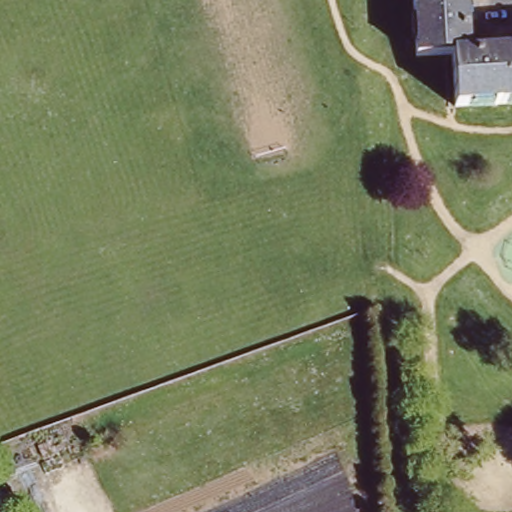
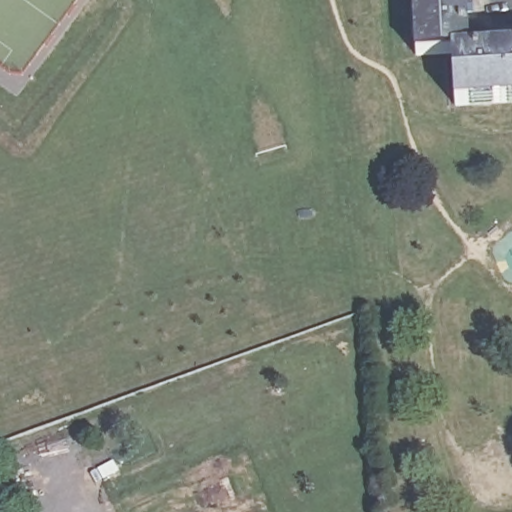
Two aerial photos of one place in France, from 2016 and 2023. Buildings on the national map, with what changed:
unchanged [(452,52),(416,55),(414,0),(466,0),(468,51),(512,49),(512,101),(455,104),(452,52)]

